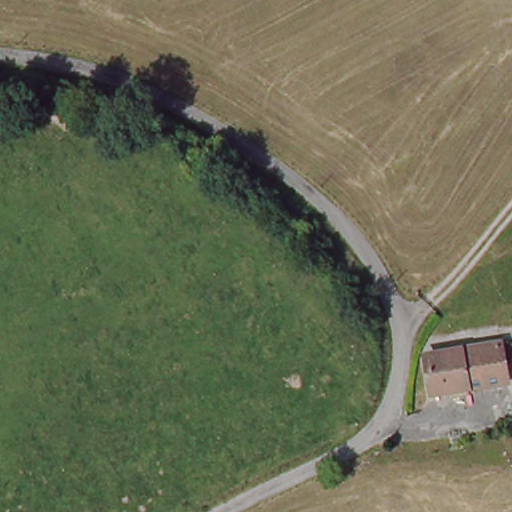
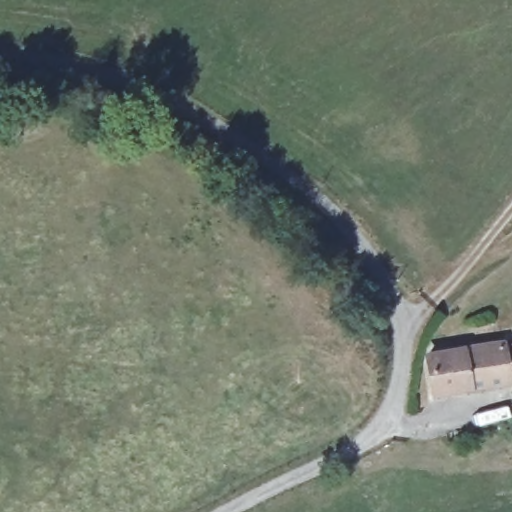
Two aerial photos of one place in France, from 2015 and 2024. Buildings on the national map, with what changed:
unchanged [(505,384),(430,398),(421,360),(497,344),(505,384)]

